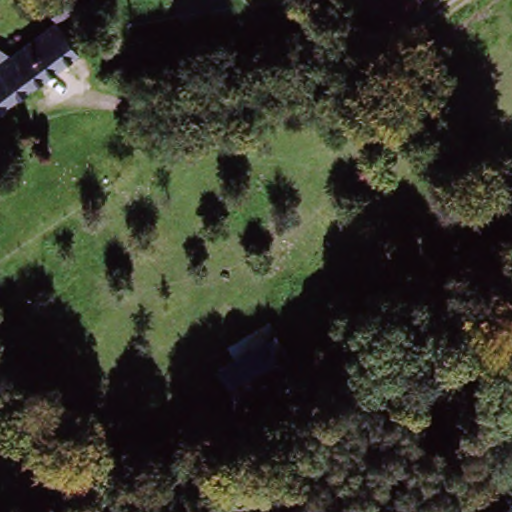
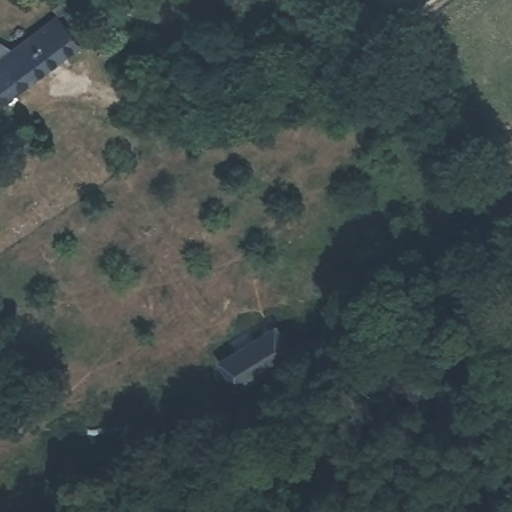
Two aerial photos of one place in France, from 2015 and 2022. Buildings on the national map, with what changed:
unchanged [(65,9),(59,0),(79,0),(65,9)]
unchanged [(36,78),(33,74),(0,98),(0,58),(61,14),(80,45),(36,78)]
unchanged [(239,390),(223,361),(283,324),(299,354),(239,390)]

